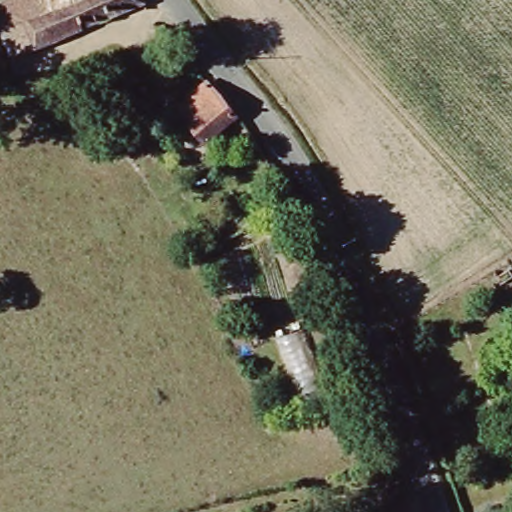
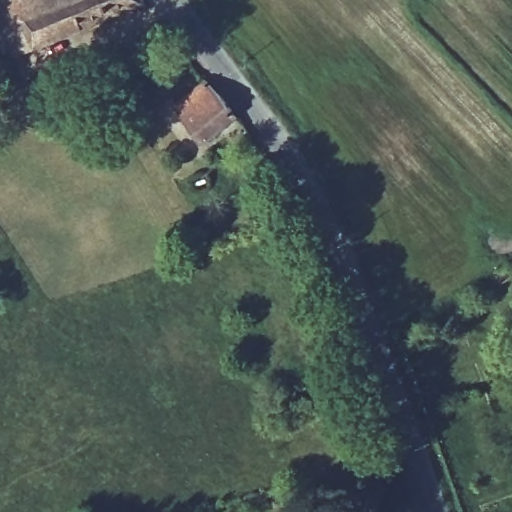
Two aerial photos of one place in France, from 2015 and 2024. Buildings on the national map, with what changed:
unchanged [(0,5),(0,4),(7,0),(143,0),(29,62),(0,5)]
unchanged [(244,114),(213,138),(184,101),(213,78),(228,95),(244,114)]

